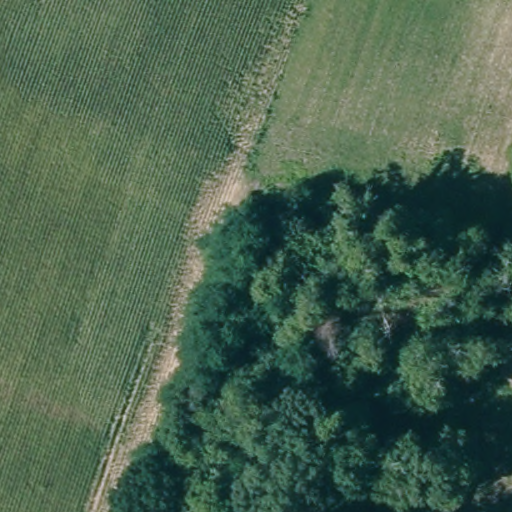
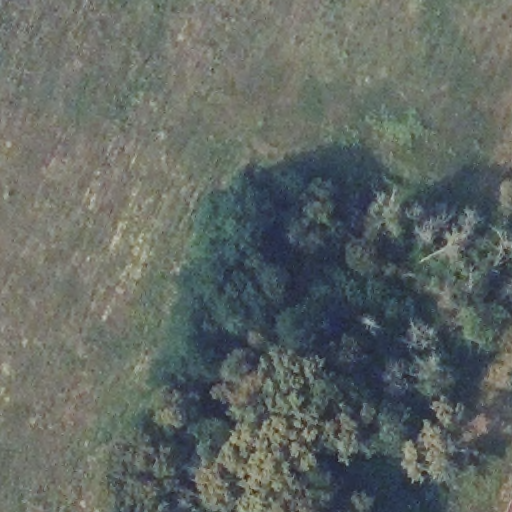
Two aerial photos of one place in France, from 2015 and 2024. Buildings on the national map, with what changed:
unchanged [(512,508),(512,512),(511,512),(512,508)]

